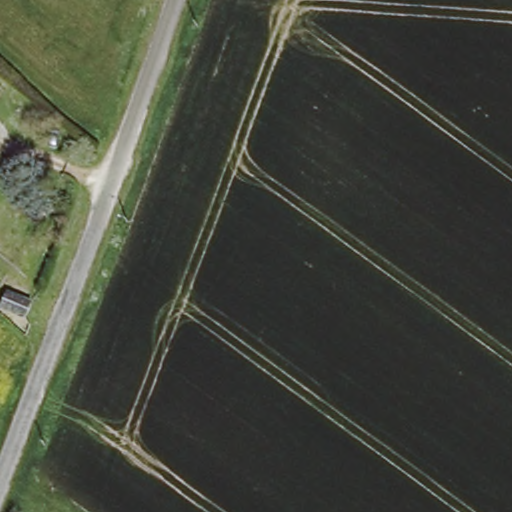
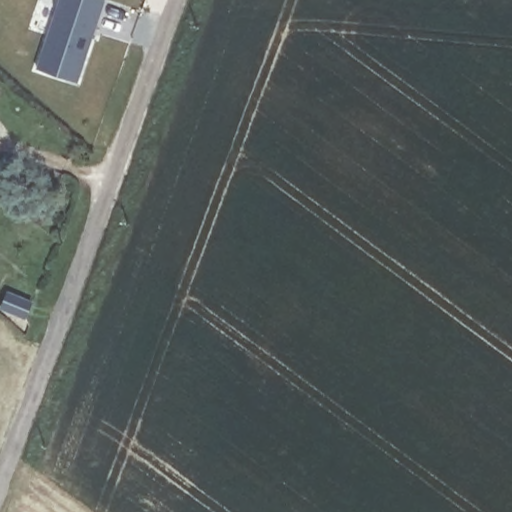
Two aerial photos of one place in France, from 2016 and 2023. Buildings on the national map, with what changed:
new [(105,0),(77,84),(35,69),(57,0),(105,0)]
demolished [(0,291),(0,264),(12,274),(0,291)]
unchanged [(25,323),(1,315),(7,298),(31,306),(25,323)]

